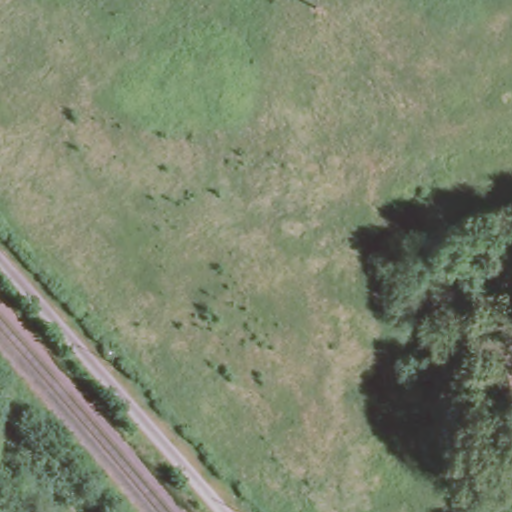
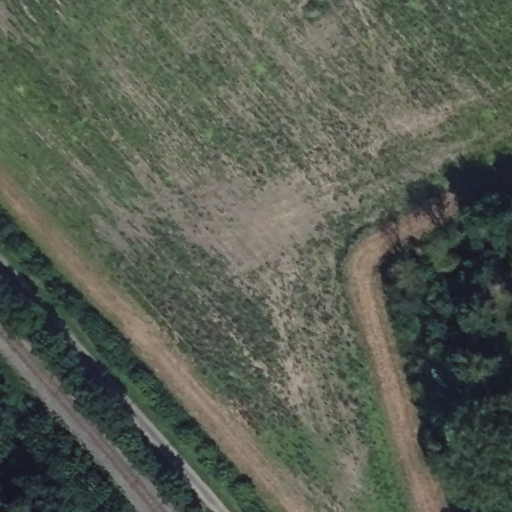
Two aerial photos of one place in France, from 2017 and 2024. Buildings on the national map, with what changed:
[]

